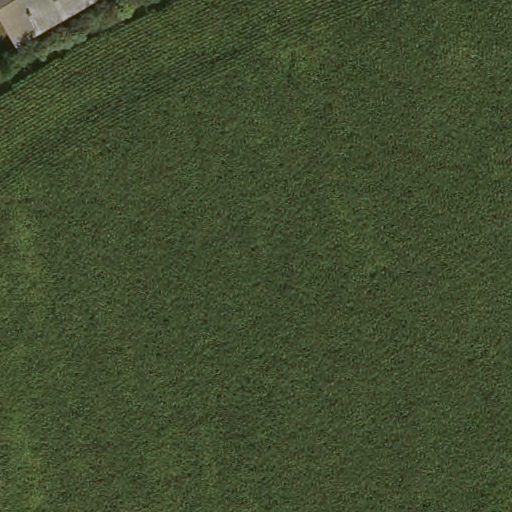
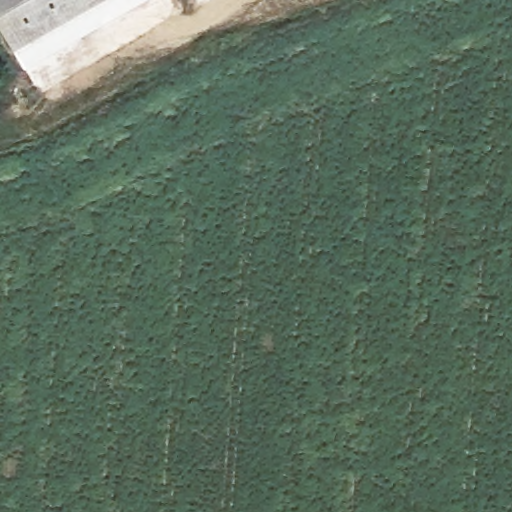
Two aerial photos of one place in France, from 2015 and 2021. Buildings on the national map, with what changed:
unchanged [(0,0),(105,0),(14,52),(0,28),(0,0)]

